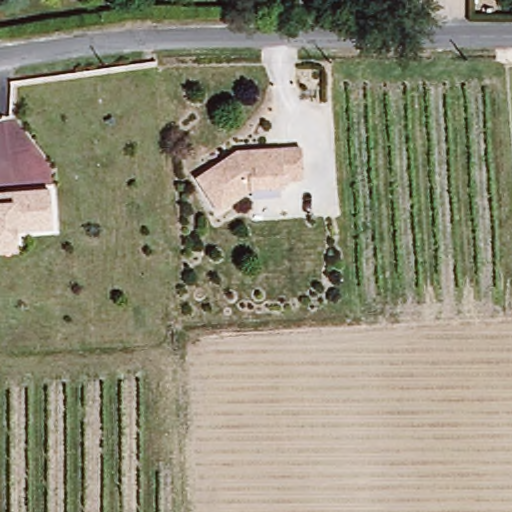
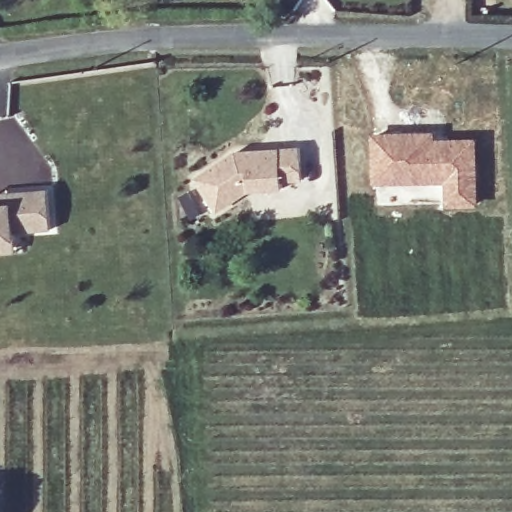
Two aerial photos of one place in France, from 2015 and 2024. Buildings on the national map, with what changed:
new [(451,183),(376,181),(375,136),(433,134),(434,150),(449,149),(450,142),(475,141),(475,202),(451,204),(451,183)]
unchanged [(297,176),(278,176),(277,186),(244,186),(213,206),(192,173),(223,154),(233,147),(296,145),(297,176)]
unchanged [(0,248),(0,185),(9,185),(49,184),(50,227),(17,227),(17,233),(17,248),(0,248)]

